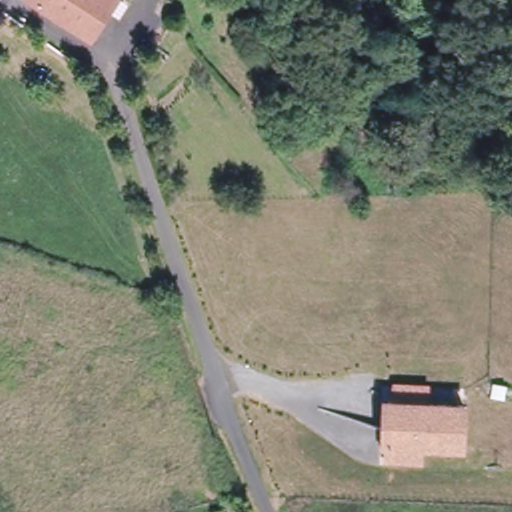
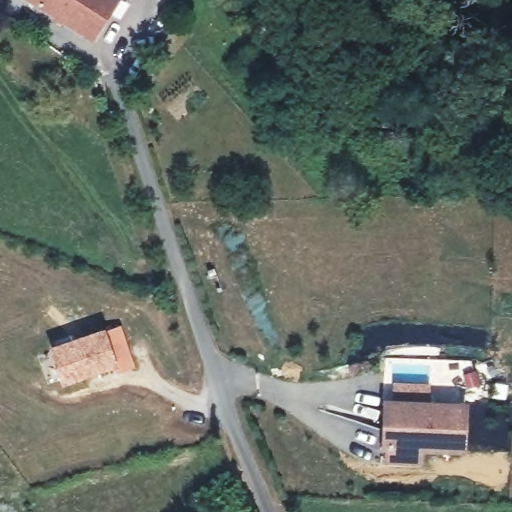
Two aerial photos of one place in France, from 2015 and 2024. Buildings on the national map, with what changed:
unchanged [(41,0),(121,0),(103,35),(41,0)]
new [(48,345),(103,327),(116,367),(61,386),(48,345)]
unchanged [(393,459),(393,443),(387,443),(388,398),(395,398),(471,402),(469,447),(428,445),(427,460),(393,459)]

